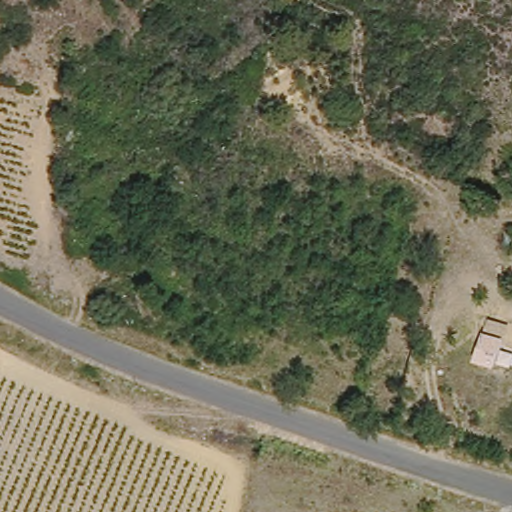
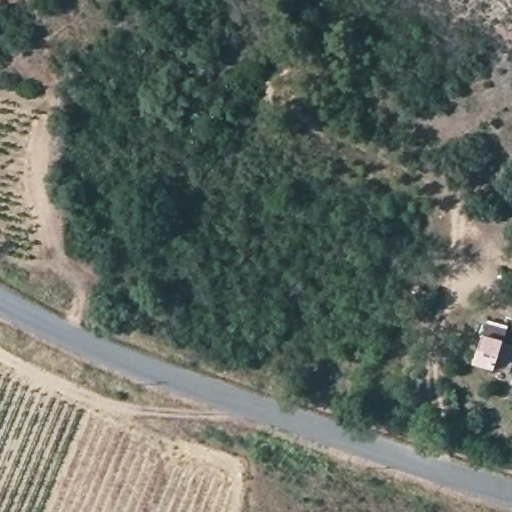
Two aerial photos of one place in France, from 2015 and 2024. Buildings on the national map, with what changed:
unchanged [(499,348),(490,368),(470,360),(477,340),(499,348)]

